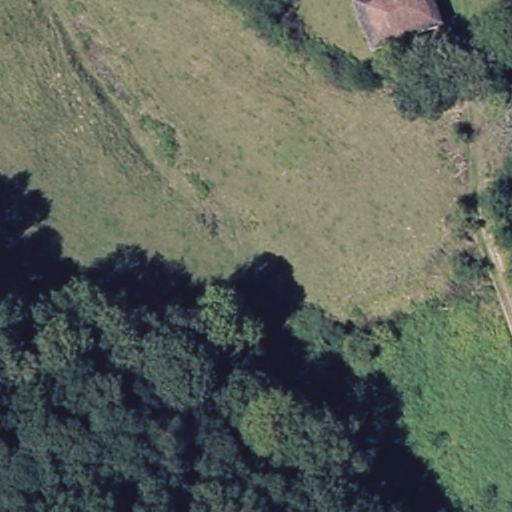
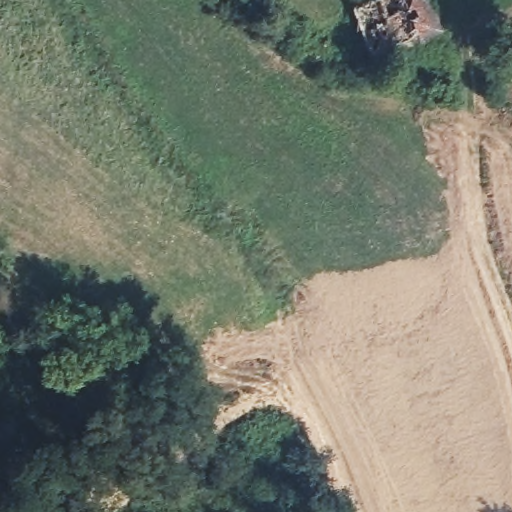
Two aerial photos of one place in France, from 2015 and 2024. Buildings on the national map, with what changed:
unchanged [(380,59),(362,10),(387,0),(429,0),(443,35),(406,49),(380,59)]

